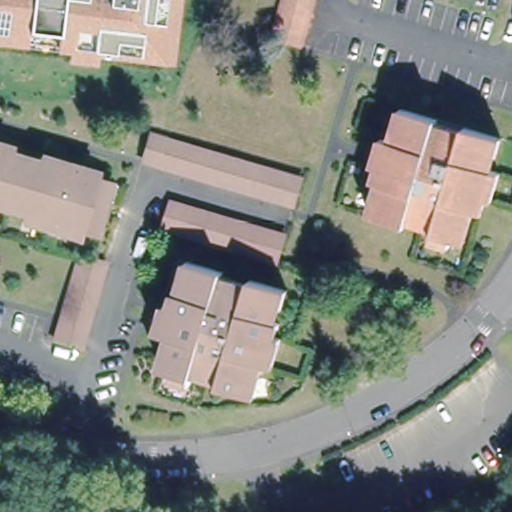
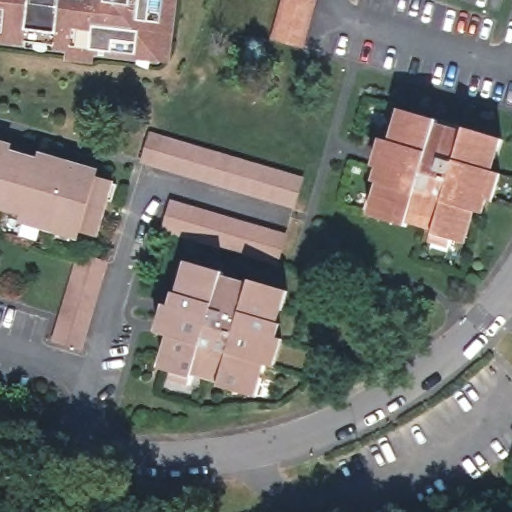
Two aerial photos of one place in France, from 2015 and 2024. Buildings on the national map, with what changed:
unchanged [(182,8),(172,6),(171,22),(180,24),(177,56),(168,55),(167,64),(146,61),(147,53),(102,48),(101,58),(82,56),(84,45),(66,44),(8,36),(0,36),(0,0),(183,0),(182,8)]
unchanged [(305,40),(278,32),(286,0),(315,0),(305,40)]
unchanged [(425,114),(424,118),(456,128),(457,124),(497,135),(493,150),(487,149),(485,161),(496,166),(490,193),(481,190),(477,205),(472,205),(463,238),(450,234),(449,240),(430,234),(431,223),(402,215),(402,220),(371,210),(375,191),(381,193),(384,177),(375,175),(376,166),(371,164),(378,137),(390,140),(395,122),(392,120),(396,106),(425,114)]
unchanged [(298,176),(292,202),(141,160),(149,136),(298,176)]
unchanged [(3,145),(31,152),(32,147),(91,163),(90,168),(112,175),(100,225),(84,222),(82,229),(65,224),(67,220),(50,215),(48,221),(26,215),(27,210),(0,203),(0,139),(5,140),(3,145)]
unchanged [(278,233),(272,255),(165,225),(170,206),(278,233)]
unchanged [(101,258),(80,342),(57,335),(79,253),(101,258)]
unchanged [(219,270),(219,275),(251,285),(253,277),(285,285),(281,302),(277,300),(275,312),(283,315),(280,331),(286,334),(280,360),(265,356),(262,368),(266,369),(262,390),(207,373),(204,383),(180,376),(184,361),(171,357),(175,341),(164,338),(170,310),(174,310),(179,295),(185,296),(189,282),(186,281),(191,263),(219,270)]

